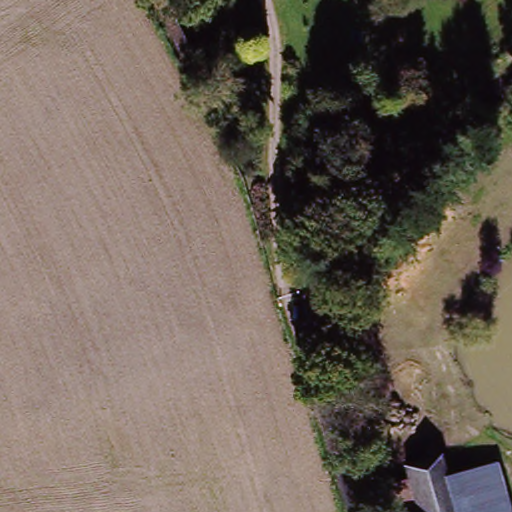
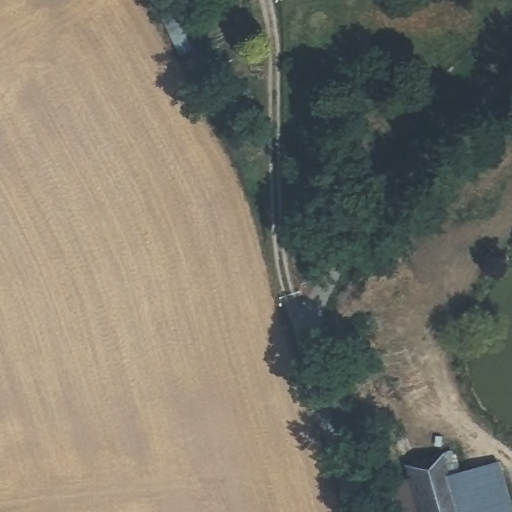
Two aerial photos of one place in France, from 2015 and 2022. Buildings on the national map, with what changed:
unchanged [(407,484),(403,471),(442,461),(450,483),(498,469),(510,512),(388,512),(382,490),(407,484)]

